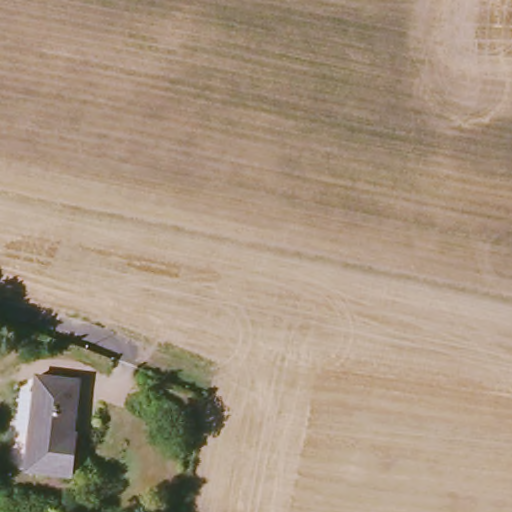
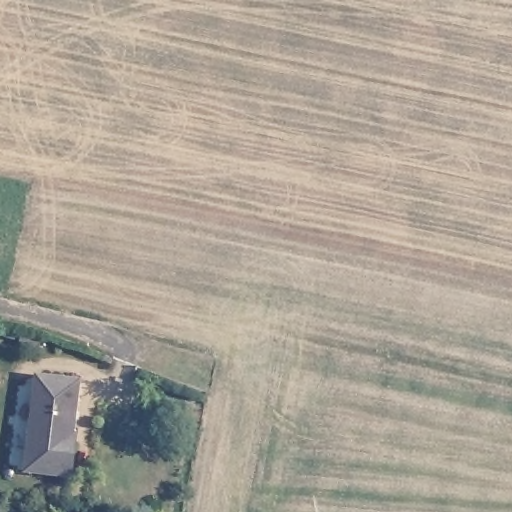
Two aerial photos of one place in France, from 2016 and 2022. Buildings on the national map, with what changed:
unchanged [(82,383),(75,442),(78,442),(74,476),(32,471),(43,378),(82,383)]

